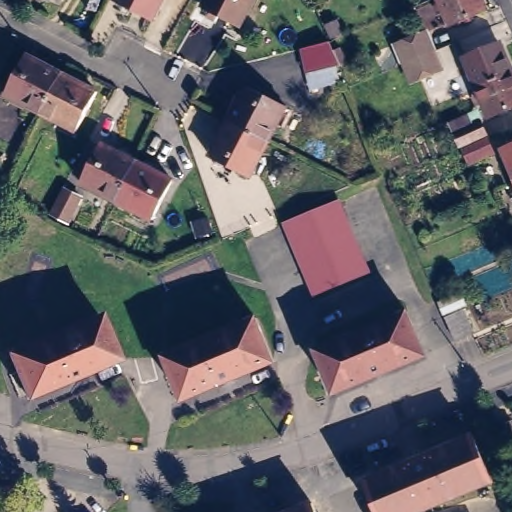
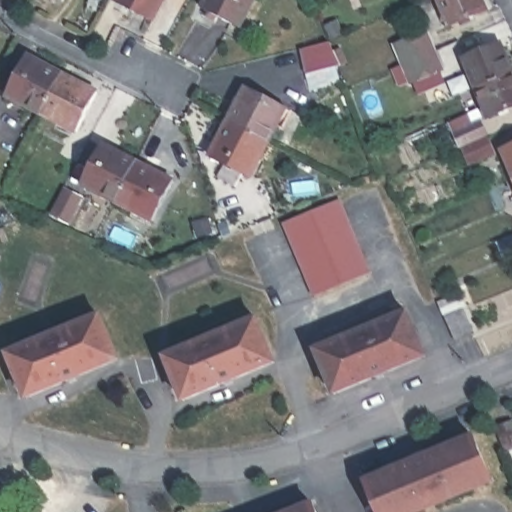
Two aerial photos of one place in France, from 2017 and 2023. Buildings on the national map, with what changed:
unchanged [(43,0),(53,0),(51,4),(43,0)]
unchanged [(167,0),(151,30),(115,11),(121,0),(167,0)]
unchanged [(202,18),(211,0),(258,0),(239,37),(202,18)]
unchanged [(448,0),(489,0),(455,14),(448,0)]
unchanged [(410,82),(403,63),(395,45),(425,32),(433,51),(441,69),(410,82)]
unchanged [(322,36),(329,33),(332,41),(325,44),(322,36)]
unchanged [(500,43),(512,72),(476,87),(465,58),(500,43)]
unchanged [(335,54),(341,66),(334,70),(330,72),(334,82),(328,85),(323,73),(303,78),(297,53),(324,46),(328,57),(335,54)]
unchanged [(56,79),(36,118),(1,99),(21,60),(56,79)]
unchanged [(512,72),(512,107),(488,116),(476,87),(512,72)]
unchanged [(92,97),(72,136),(36,118),(56,79),(92,97)]
unchanged [(285,111),(267,146),(228,126),(246,91),(285,111)]
unchanged [(468,164),(461,148),(454,132),(450,122),(470,114),(474,123),(480,120),(487,137),(495,153),(468,164)]
unchanged [(267,146),(249,182),(210,162),(228,126),(267,146)]
unchanged [(512,146),(512,172),(502,149),(512,146)]
unchanged [(76,189),(96,149),(131,167),(111,207),(76,189)]
unchanged [(167,185),(147,225),(111,207),(131,167),(167,185)]
unchanged [(80,198),(67,222),(51,214),(64,189),(80,198)]
unchanged [(333,206),(363,277),(309,299),(280,228),(333,206)]
unchanged [(462,306),(443,314),(438,302),(457,294),(462,306)]
unchanged [(471,333),(455,340),(445,316),(460,310),(471,333)]
unchanged [(116,363),(27,401),(10,359),(98,321),(116,363)]
unchanged [(401,323),(419,365),(330,402),(312,360),(401,323)]
unchanged [(255,329),(273,371),(183,409),(166,367),(255,329)]
unchanged [(505,452),(494,427),(512,420),(512,449),(505,452)]
unchanged [(425,454),(426,456),(472,437),(490,481),(417,512),(379,512),(366,481),(411,462),(411,460),(425,454)]

